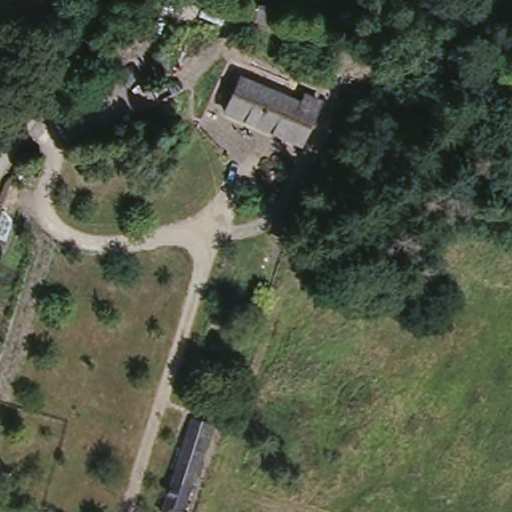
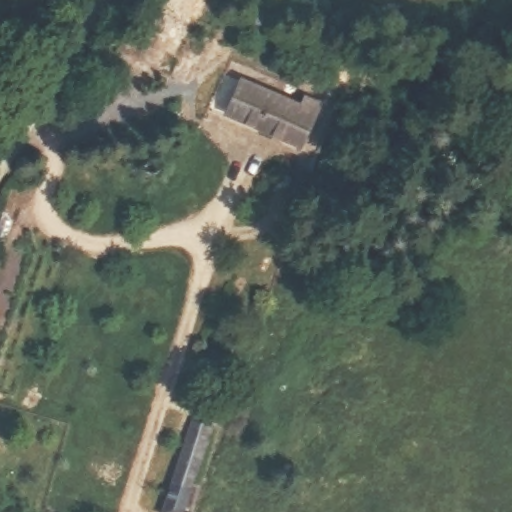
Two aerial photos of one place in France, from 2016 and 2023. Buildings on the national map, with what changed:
unchanged [(255,6),(280,8),(278,26),(254,24),(255,6)]
unchanged [(311,151),(219,115),(231,82),(307,112),(310,107),(327,112),(311,151)]
unchanged [(197,474),(190,480),(177,512),(157,512),(193,421),(215,428),(197,474)]

